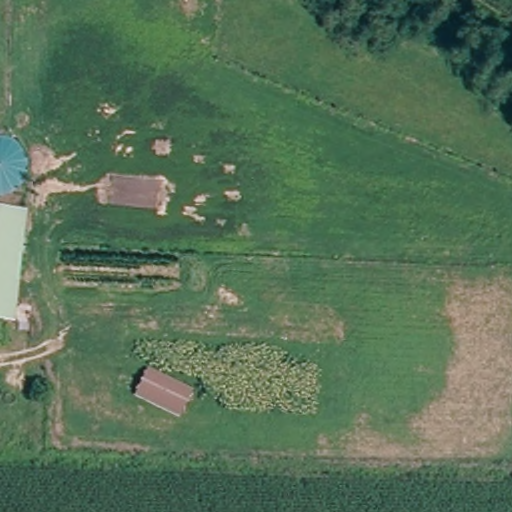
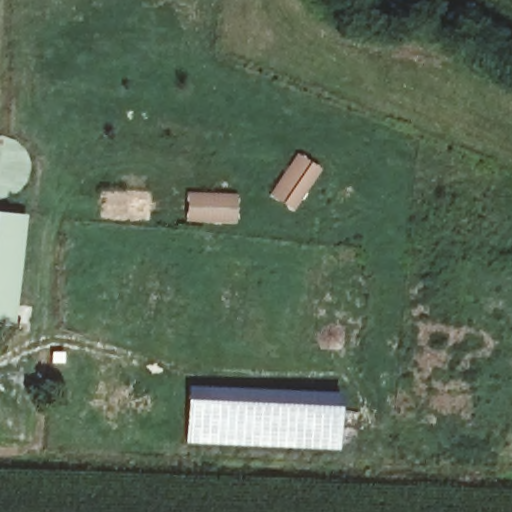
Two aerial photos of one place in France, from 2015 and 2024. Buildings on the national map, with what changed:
unchanged [(17,212),(14,322),(0,322),(0,212),(17,212)]
new [(334,425),(333,441),(339,441),(338,448),(185,441),(188,385),(340,391),(339,426),(334,425)]

